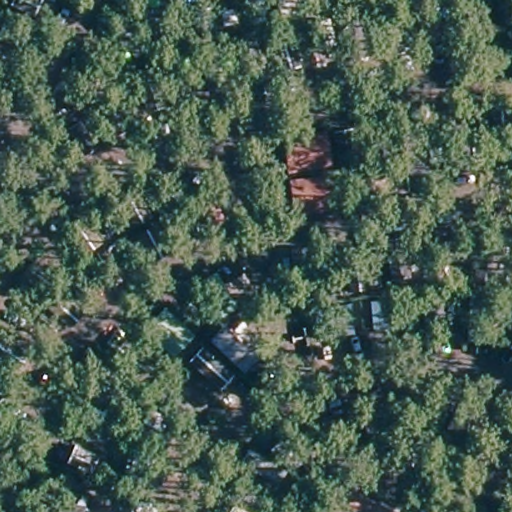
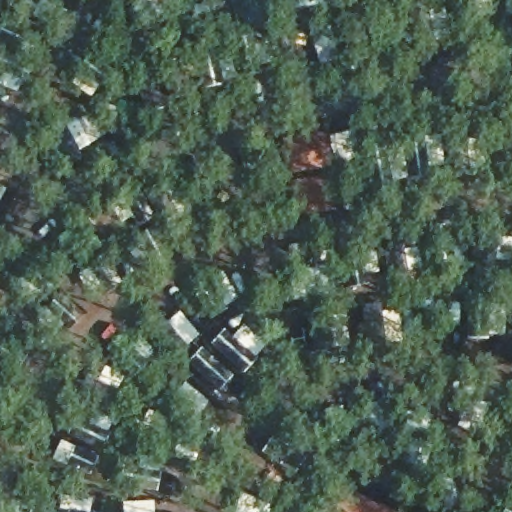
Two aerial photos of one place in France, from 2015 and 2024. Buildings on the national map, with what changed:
unchanged [(289,142),(319,137),(324,165),(293,170),(284,171),(280,145),(280,143),(283,143),(289,142)]
unchanged [(287,185),(295,184),(325,179),(330,207),(299,212),(290,213),(287,185)]
unchanged [(196,285),(212,275),(222,269),(242,304),(238,307),(217,319),(196,285)]
unchanged [(418,325),(378,328),(377,317),(376,304),(376,299),(416,295),(418,320),(419,325),(418,325)]
unchanged [(318,335),(317,323),(315,305),(356,301),(358,326),(359,330),(318,335)]
unchanged [(154,329),(149,325),(163,312),(170,304),(171,305),(199,333),(195,336),(178,354),(154,329)]
unchanged [(371,512),(320,512),(333,488),(373,509),(371,512)]
unchanged [(377,512),(371,512),(373,509),(377,512)]

